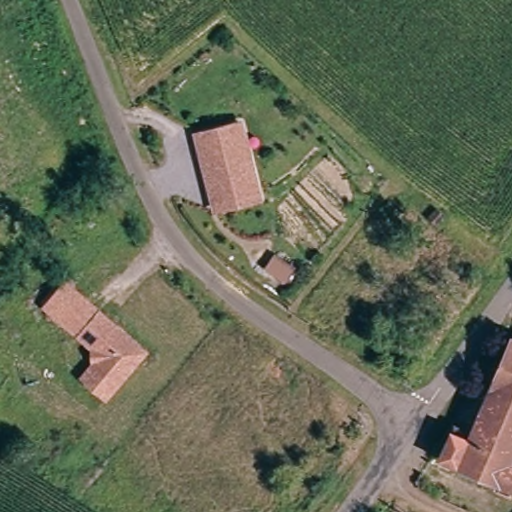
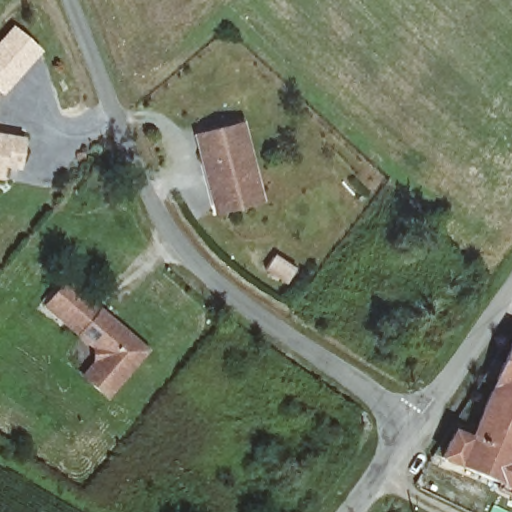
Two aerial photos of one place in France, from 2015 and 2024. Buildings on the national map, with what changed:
new [(37,55),(24,70),(2,95),(0,93),(0,50),(1,50),(14,34),(37,55)]
unchanged [(260,198),(217,210),(196,135),(225,127),(239,122),(247,152),(251,167),(260,198)]
new [(20,174),(5,171),(3,182),(0,182),(0,136),(26,141),(20,174)]
unchanged [(281,268),(273,282),(252,268),(259,256),(281,268)]
unchanged [(48,306),(67,282),(149,348),(111,395),(88,376),(100,361),(99,347),(48,306)]
unchanged [(510,460),(512,460),(512,490),(438,461),(450,430),(466,436),(512,337),(512,338),(512,455),(510,460)]

